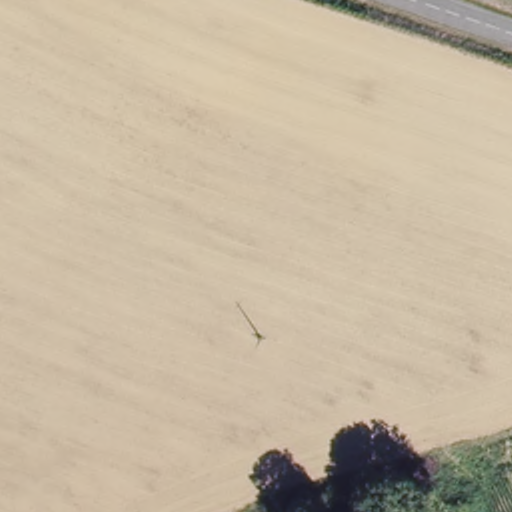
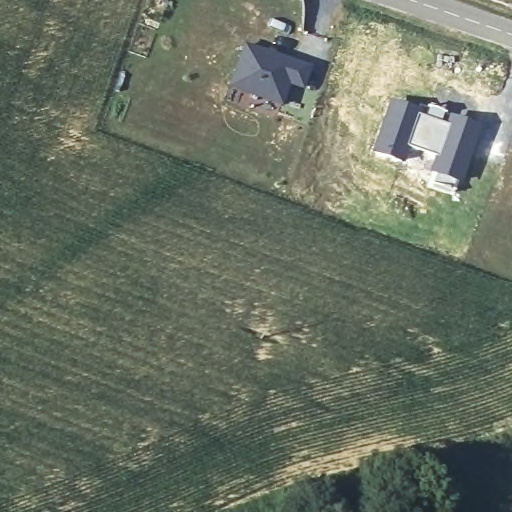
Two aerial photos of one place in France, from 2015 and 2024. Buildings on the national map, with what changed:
new [(270,70),(263,91),(213,74),(227,33),(277,50),(290,55),(285,74),(270,70)]
new [(388,100),(415,110),(406,138),(396,135),(388,157),(371,151),(388,100)]
new [(406,138),(415,110),(424,114),(427,105),(481,123),(468,163),(454,195),(428,185),(432,174),(426,171),(432,156),(403,146),(406,138)]

